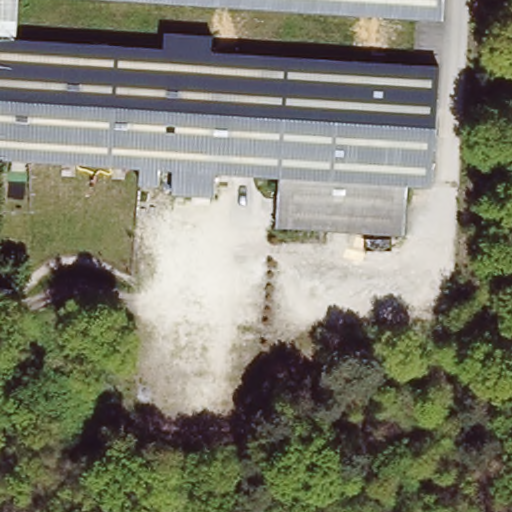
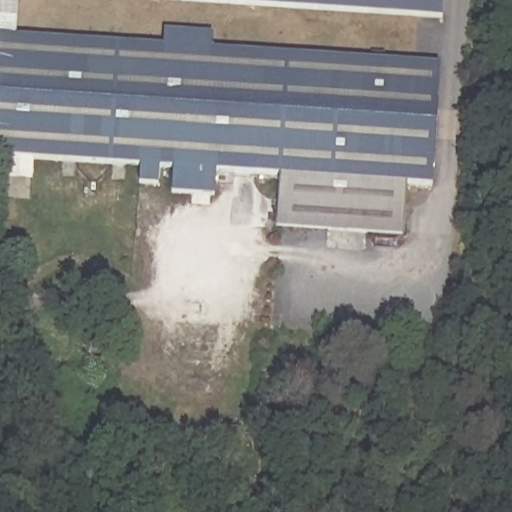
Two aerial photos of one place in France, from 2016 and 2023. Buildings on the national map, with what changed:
unchanged [(37,0),(449,0),(449,15),(37,0)]
unchanged [(213,51),(440,65),(432,185),(410,184),(404,235),(277,227),(280,175),(217,172),(215,196),(172,193),(174,168),(160,167),(158,185),(138,183),(139,166),(0,156),(0,35),(166,46),(165,30),(214,34),(213,51)]

